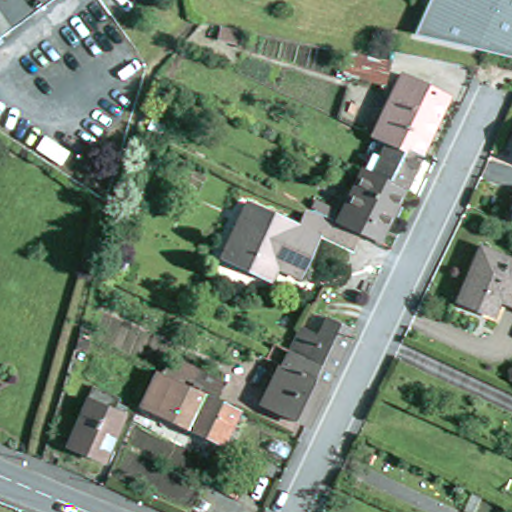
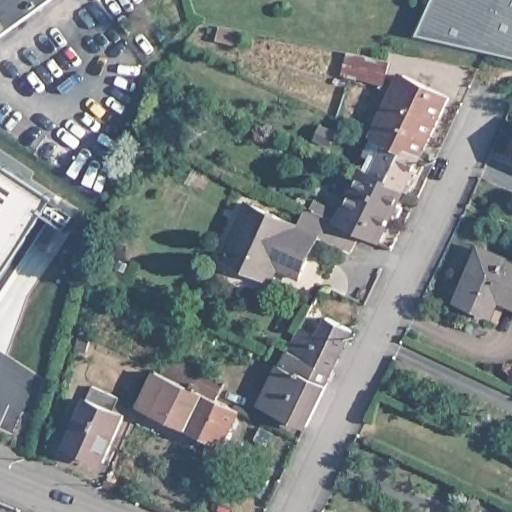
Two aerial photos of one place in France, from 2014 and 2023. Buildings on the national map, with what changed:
unchanged [(0,0),(65,0),(0,49),(0,0)]
unchanged [(418,31),(433,0),(512,0),(512,56),(418,31)]
unchanged [(386,60),(380,84),(342,76),(347,52),(386,60)]
unchanged [(402,74),(448,98),(422,156),(421,159),(388,141),(387,144),(374,137),(402,74)]
unchanged [(388,141),(421,159),(405,195),(385,186),(386,183),(375,178),(377,175),(373,173),(387,144),(388,141)]
new [(67,232),(42,215),(0,279),(0,163),(79,214),(67,232)]
unchanged [(363,172),(375,178),(386,183),(385,186),(405,195),(398,208),(404,211),(399,220),(394,217),(380,245),(362,237),(360,237),(351,233),(339,227),(363,172)]
unchanged [(351,233),(360,237),(362,237),(353,256),(320,241),(300,284),(276,273),(248,271),(245,273),(245,271),(227,253),(248,206),(302,231),(310,214),(311,214),(316,206),(335,215),(330,223),(339,227),(351,233)]
unchanged [(512,261),(512,304),(497,297),(489,316),(464,304),(486,250),(512,261)]
unchanged [(274,408),(290,377),(293,369),(294,369),(301,355),(312,332),(328,340),(337,320),(362,334),(342,377),(335,390),(317,430),(275,409),(274,408)]
unchanged [(93,352),(102,357),(98,369),(86,365),(90,351),(93,352)]
unchanged [(201,374),(226,387),(218,403),(241,414),(226,447),(145,407),(158,375),(193,391),(201,374)]
unchanged [(123,404),(119,417),(131,423),(111,471),(73,454),(98,392),(123,404)]
unchanged [(235,512),(220,512),(222,506),(235,512)]

